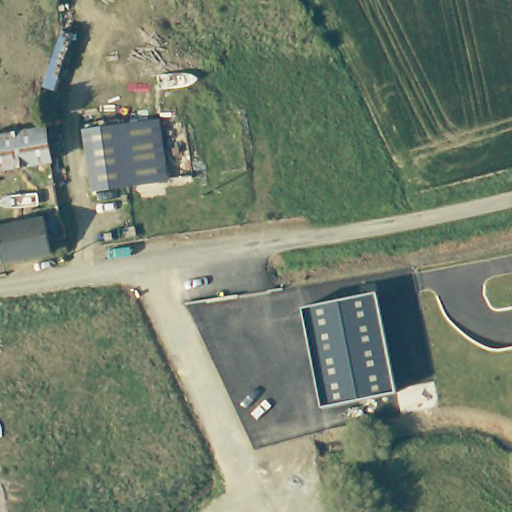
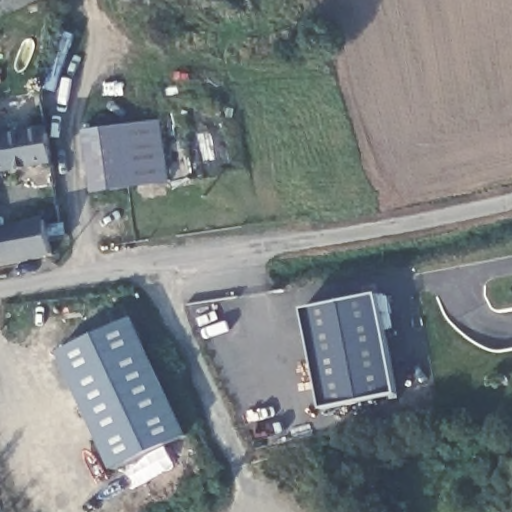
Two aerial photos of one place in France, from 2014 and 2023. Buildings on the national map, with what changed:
unchanged [(167,185),(124,191),(115,131),(157,126),(167,185)]
unchanged [(29,131),(44,128),(51,166),(0,173),(0,136),(29,131)]
unchanged [(124,191),(89,197),(80,136),(115,131),(124,191)]
unchanged [(46,221),(62,224),(68,258),(2,269),(0,269),(0,230),(46,221)]
unchanged [(382,312),(401,406),(326,421),(303,308),(378,293),(382,312)]
new [(132,318),(186,434),(114,468),(59,351),(132,318)]

